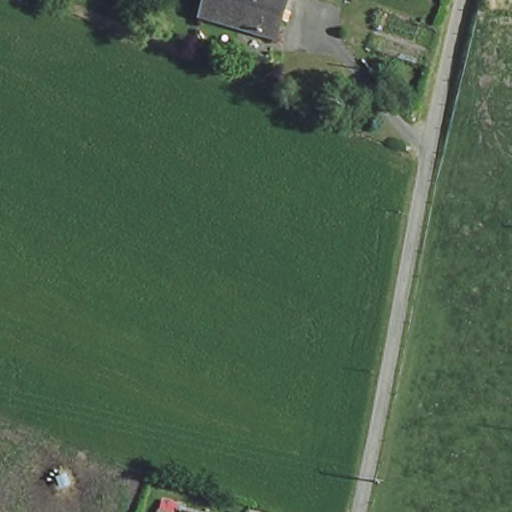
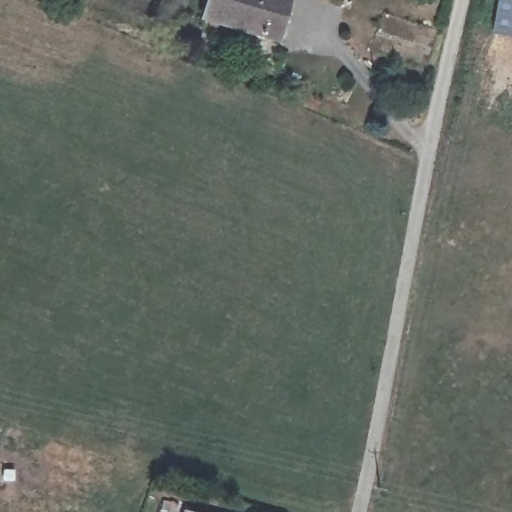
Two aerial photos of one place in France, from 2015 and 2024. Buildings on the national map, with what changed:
unchanged [(278,43),(206,18),(212,0),(293,0),(278,43)]
new [(494,30),(498,0),(512,0),(512,31),(494,30)]
unchanged [(209,512),(183,512),(184,505),(209,512)]
unchanged [(258,512),(251,512),(251,510),(258,512)]

